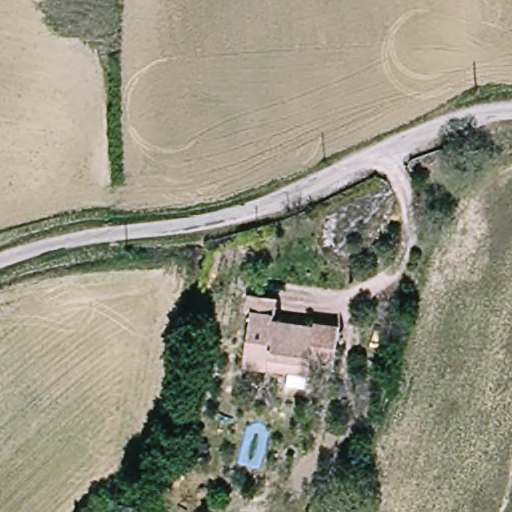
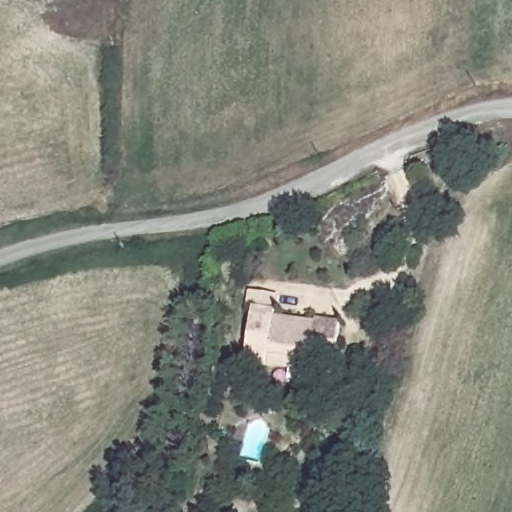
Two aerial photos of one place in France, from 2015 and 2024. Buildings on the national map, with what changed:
unchanged [(254,364),(256,311),(249,311),(250,291),(274,292),(274,316),(317,318),(317,336),(339,336),(339,353),(316,353),(316,365),(274,365),(254,364)]

